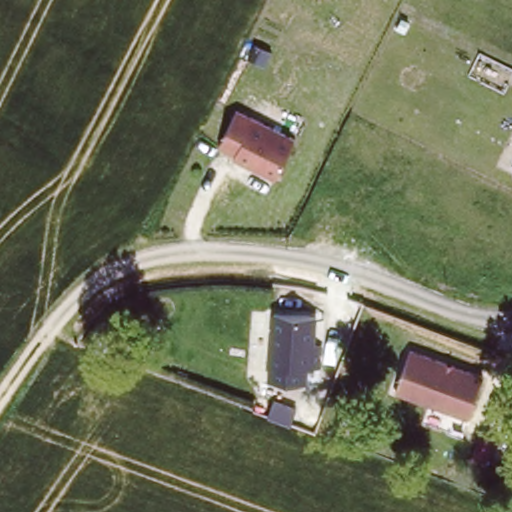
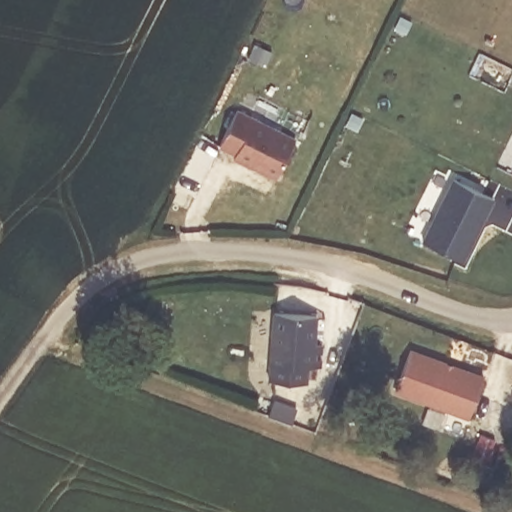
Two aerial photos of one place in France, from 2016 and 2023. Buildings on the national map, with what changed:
new [(403,15),(416,21),(409,35),(395,28),(403,15)]
unchanged [(293,135),(272,177),(232,156),(235,151),(217,143),(235,106),(293,135)]
new [(352,112),(365,119),(358,132),(345,126),(352,112)]
new [(421,239),(452,178),(492,199),(463,259),(421,239)]
unchanged [(273,313),(315,317),(313,346),(321,346),(320,368),(307,366),(307,382),(270,378),(273,313)]
unchanged [(482,375),(468,420),(392,394),(410,348),(482,375)]

